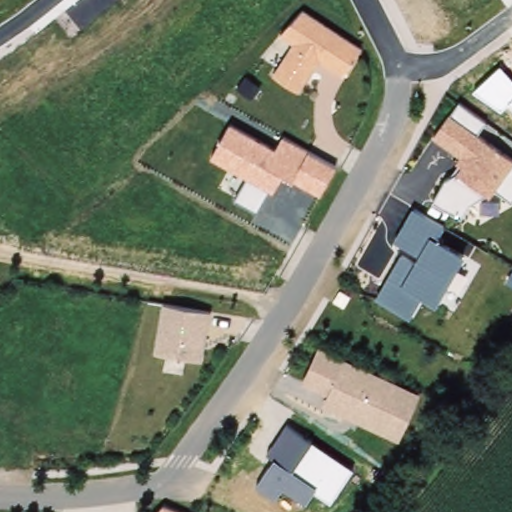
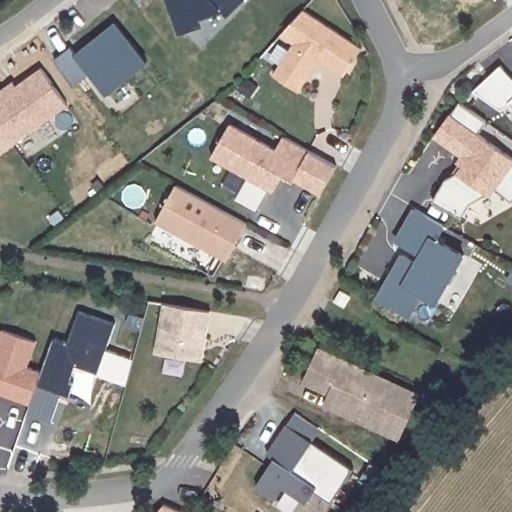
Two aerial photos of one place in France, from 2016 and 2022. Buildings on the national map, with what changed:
new [(215,13),(210,8),(187,16),(190,23),(166,32),(155,0),(229,0),(215,13)]
unchanged [(292,42),(279,35),(303,11),(361,48),(342,76),(318,61),(299,90),(274,74),(292,42)]
new [(70,46),(75,54),(114,21),(148,59),(106,93),(90,71),(73,84),(55,58),(70,46)]
unchanged [(473,91),(502,64),(512,75),(512,107),(509,103),(502,110),(473,91)]
new [(6,86),(30,68),(57,105),(3,144),(0,140),(0,83),(2,81),(6,86)]
unchanged [(446,177),(455,172),(460,163),(455,161),(459,155),(433,135),(449,112),(452,114),(458,103),(484,121),(476,132),(512,160),(512,197),(510,199),(495,188),(489,196),(485,192),(468,202),(460,216),(435,199),(446,177)]
unchanged [(248,176),(212,155),(229,122),(275,147),(283,136),(309,151),(336,166),(321,193),(294,178),(284,172),(275,191),(269,188),(257,208),(237,197),(248,176)]
new [(0,146),(0,140),(3,144),(0,146)]
new [(167,188),(238,226),(218,263),(147,224),(167,188)]
unchanged [(400,254),(413,261),(418,253),(394,240),(413,209),(444,226),(436,240),(463,256),(436,304),(420,295),(408,315),(375,296),(400,254)]
unchanged [(163,304),(210,312),(202,360),(154,352),(163,304)]
new [(74,381),(70,394),(61,390),(51,420),(28,412),(31,403),(0,391),(0,336),(3,329),(36,341),(29,365),(44,371),(56,337),(70,341),(79,309),(116,322),(99,371),(76,362),(70,380),(74,381)]
unchanged [(319,346),(420,392),(397,440),(321,404),(326,393),(300,381),(319,346)]
unchanged [(275,457),(267,453),(287,422),(313,440),(352,466),(332,499),(316,489),(307,502),(284,486),(276,497),(258,482),(275,457)]
unchanged [(181,512),(157,512),(163,504),(181,512)]

